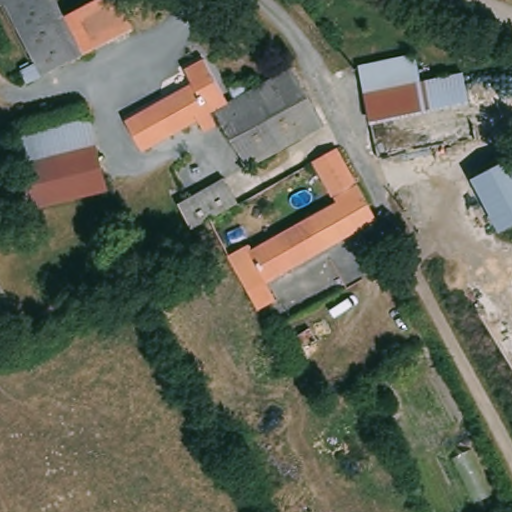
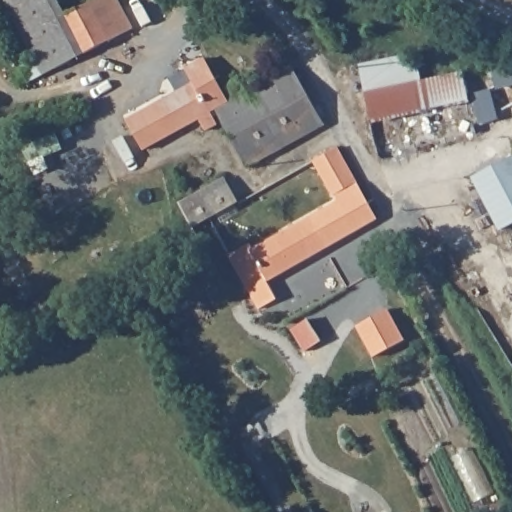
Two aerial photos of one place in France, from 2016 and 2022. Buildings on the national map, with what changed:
unchanged [(20,32),(6,5),(0,8),(0,0),(58,0),(63,9),(20,32)]
unchanged [(121,0),(136,29),(85,56),(69,18),(103,0),(121,0)]
unchanged [(63,9),(69,18),(85,56),(30,85),(22,71),(37,65),(20,32),(63,9)]
unchanged [(422,80),(465,72),(473,106),(372,125),(360,65),(416,55),(420,68),(422,80)]
unchanged [(219,114),(215,116),(220,125),(206,132),(200,122),(146,151),(129,122),(194,84),(187,71),(206,60),(231,101),(236,99),(231,90),(245,82),(250,91),(292,68),(326,126),(249,169),(219,114)]
unchanged [(91,114),(114,185),(40,209),(17,137),(91,114)]
unchanged [(314,162),(338,148),(381,222),(372,227),(250,295),(231,257),(250,246),(253,252),(338,202),(314,162)]
unchanged [(512,160),(512,230),(504,235),(472,181),(512,160)]
unchanged [(242,204),(195,230),(180,205),(227,179),(242,204)]
new [(387,308),(403,339),(372,355),(356,325),(387,308)]

